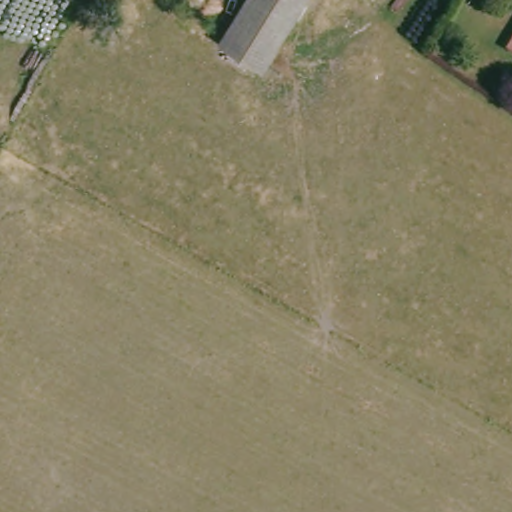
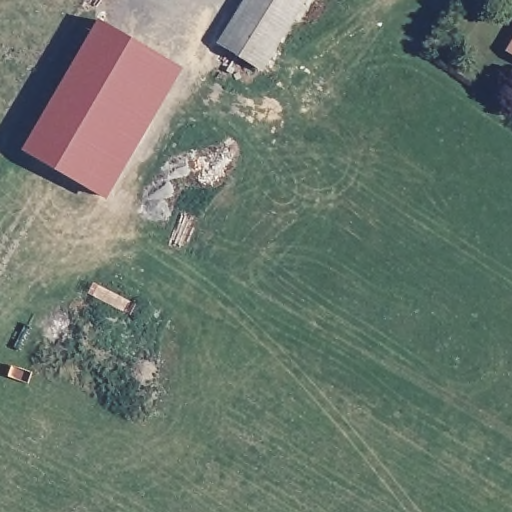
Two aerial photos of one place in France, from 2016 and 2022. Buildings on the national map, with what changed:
unchanged [(221,44),(246,0),(305,0),(264,68),(221,44)]
new [(184,69),(109,199),(24,151),(101,21),(184,69)]
unchanged [(512,45),(512,53),(509,51),(512,45)]

